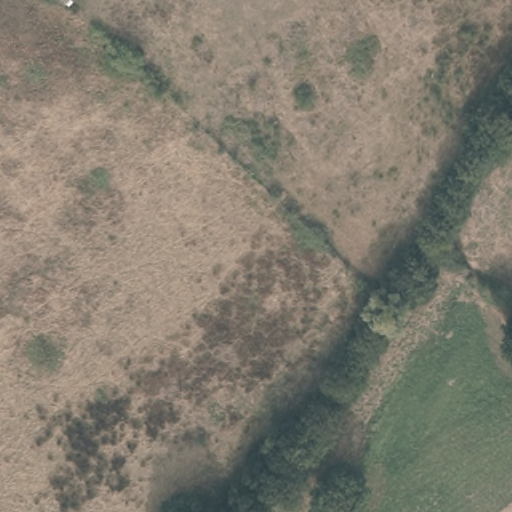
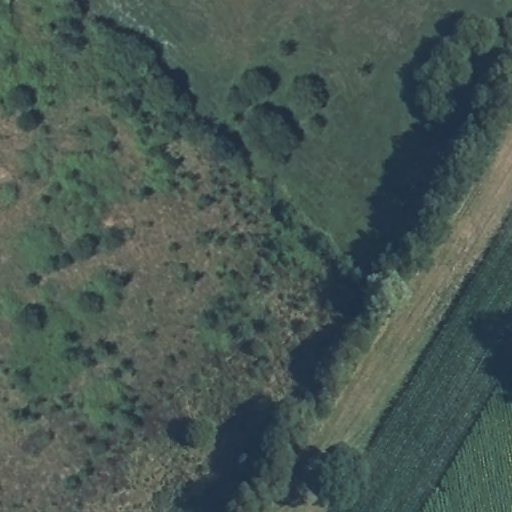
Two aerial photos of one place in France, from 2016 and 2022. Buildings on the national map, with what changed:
unchanged [(61,6),(55,0),(68,0),(61,6)]

